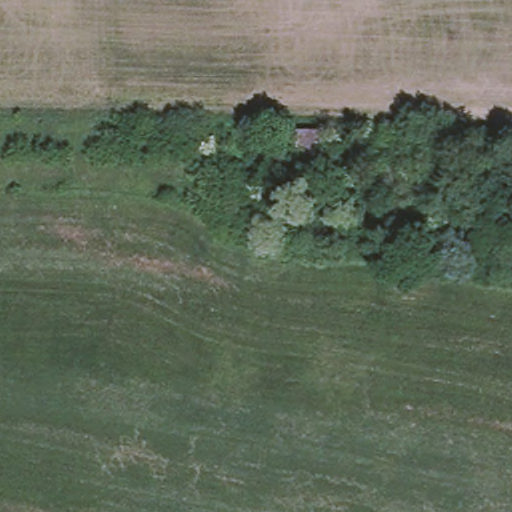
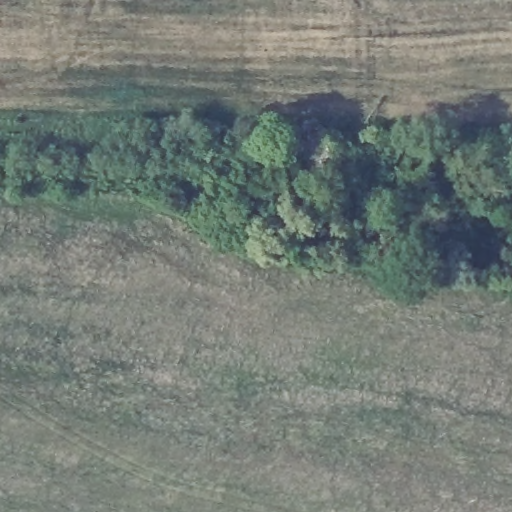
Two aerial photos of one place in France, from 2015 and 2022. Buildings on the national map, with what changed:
unchanged [(327,134),(326,183),(294,183),(288,136),(327,134)]

